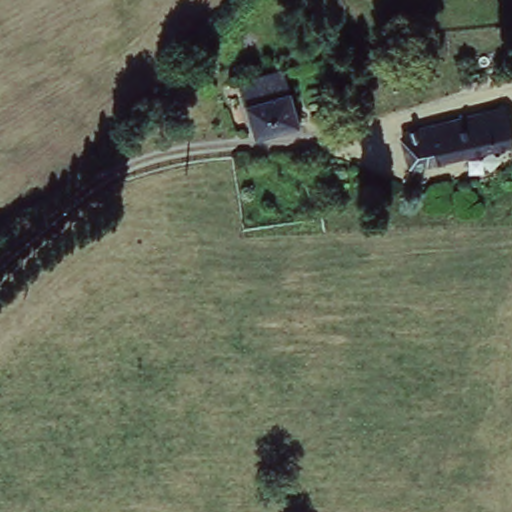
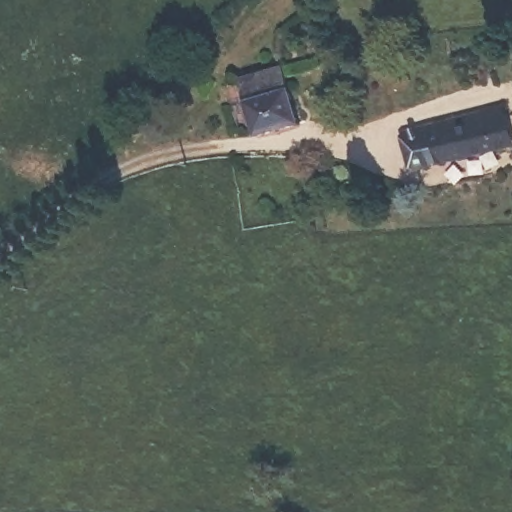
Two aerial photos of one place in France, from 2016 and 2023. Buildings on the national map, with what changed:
unchanged [(258,134),(249,100),(241,79),(285,66),(292,89),(301,122),(258,134)]
unchanged [(418,169),(409,134),(503,104),(505,109),(510,126),(511,139),(418,169)]

